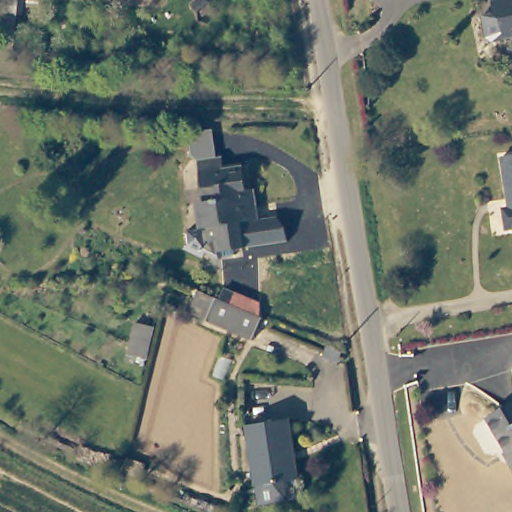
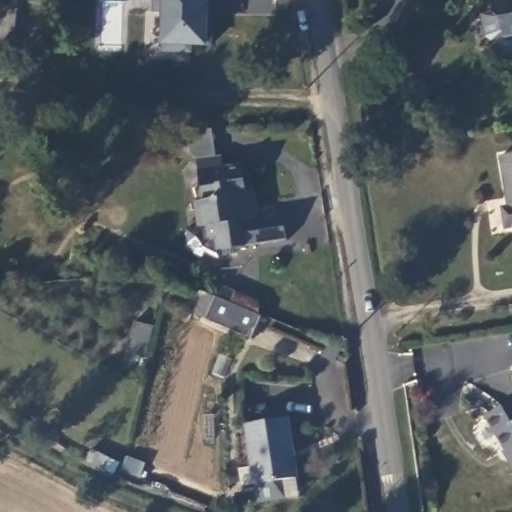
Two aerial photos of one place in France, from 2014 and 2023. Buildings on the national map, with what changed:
new [(212,45),(207,45),(192,45),(192,53),(164,52),(167,45),(164,44),(165,10),(156,10),(156,0),(212,0),(212,45)]
unchanged [(503,36),(498,14),(493,15),(491,0),(512,0),(512,35),(503,36)]
unchanged [(21,48),(5,47),(6,13),(22,13),(21,48)]
unchanged [(503,230),(500,210),(511,208),(510,198),(503,155),(512,154),(512,229),(503,230)]
unchanged [(199,240),(190,241),(182,168),(181,157),(205,155),(206,165),(228,163),(232,204),(227,205),(229,221),(256,218),(265,229),(266,244),(213,250),(200,252),(199,240)]
unchanged [(207,316),(216,295),(219,296),(223,286),(257,300),(252,311),(261,314),(252,336),(207,316)]
unchanged [(154,324),(144,364),(126,359),(137,320),(154,324)]
unchanged [(512,400),(512,471),(507,461),(511,459),(488,411),(501,405),(512,400)]
unchanged [(246,423),(287,416),(297,478),(257,484),(246,423)]

